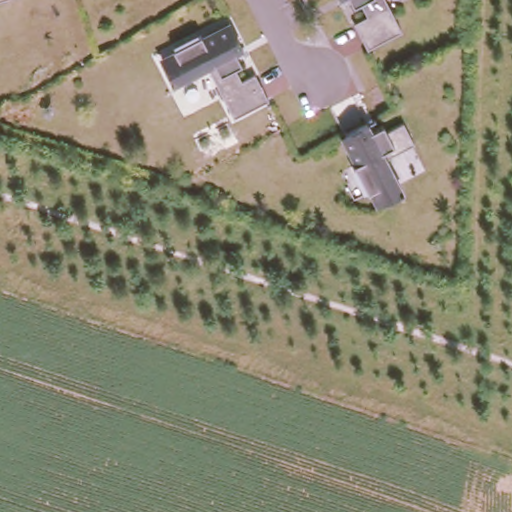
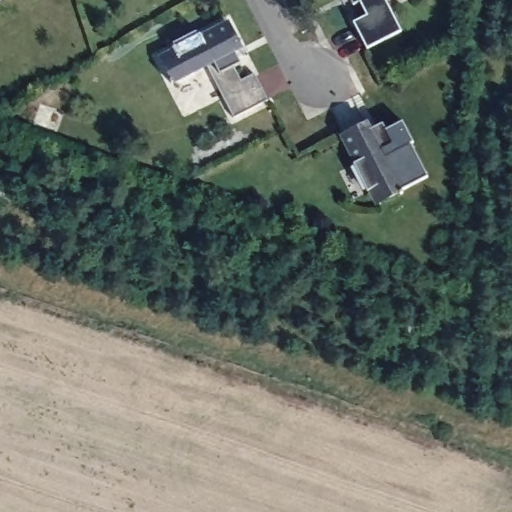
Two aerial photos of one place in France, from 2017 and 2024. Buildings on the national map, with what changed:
unchanged [(367,49),(352,22),(367,15),(360,2),(352,5),(350,0),(385,0),(401,31),(367,49)]
unchanged [(241,48),(234,51),(240,63),(233,67),(240,80),(254,73),(267,100),(233,118),(206,65),(171,83),(170,81),(171,80),(161,60),(175,53),(172,48),(200,34),(202,38),(230,25),(241,48)]
unchanged [(362,123),(365,129),(377,123),(380,129),(397,121),(408,142),(380,157),(397,191),(397,192),(395,194),(394,192),(373,202),(367,189),(362,191),(347,164),(352,161),(338,134),(362,123)]

